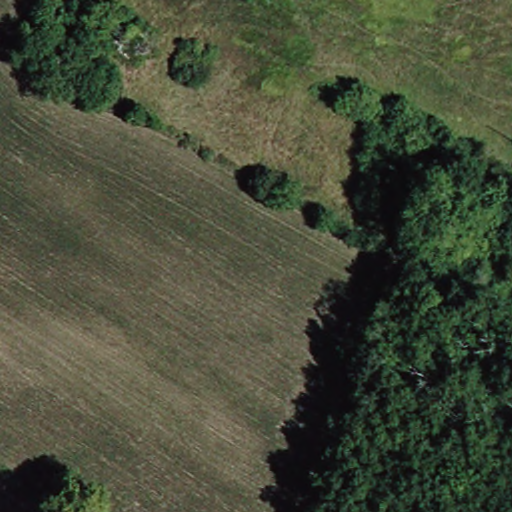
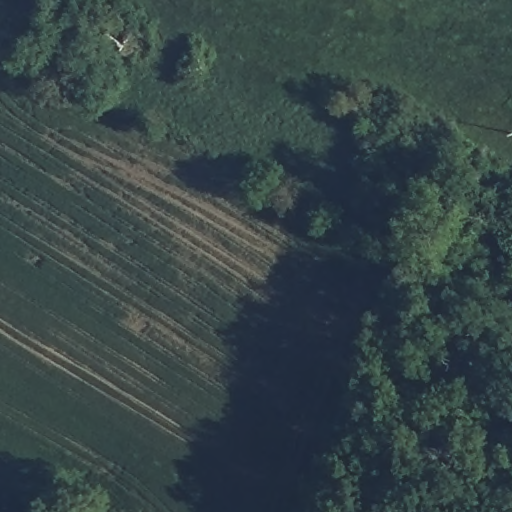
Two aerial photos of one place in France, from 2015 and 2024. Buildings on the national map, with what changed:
unchanged [(391,196),(371,178),(400,149),(420,167),(391,196)]

